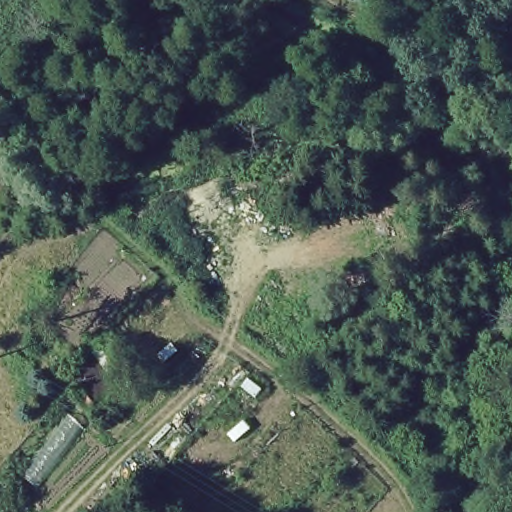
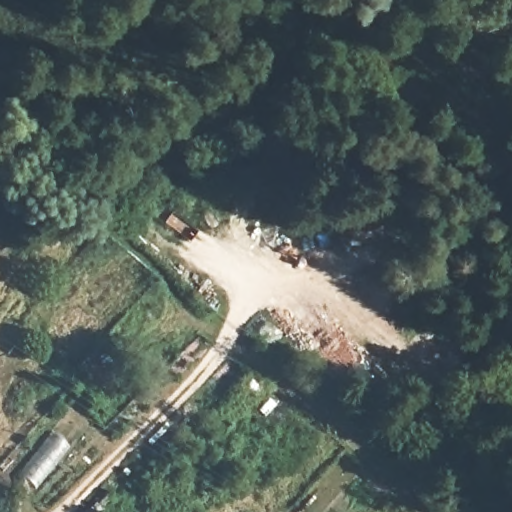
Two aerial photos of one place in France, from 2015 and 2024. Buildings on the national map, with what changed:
unchanged [(120,393),(93,411),(66,378),(90,358),(120,393)]

